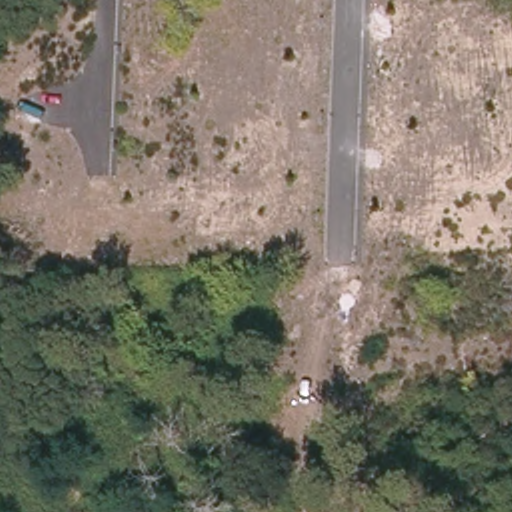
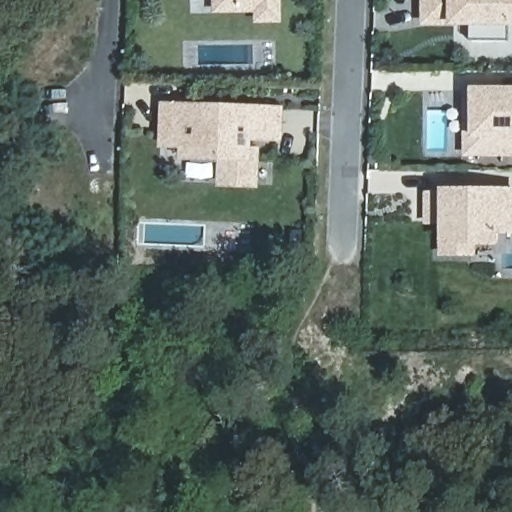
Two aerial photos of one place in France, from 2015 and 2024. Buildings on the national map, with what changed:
new [(255,12),(212,13),(212,0),(282,0),(282,22),(255,23),(255,12)]
new [(472,25),(448,26),(422,24),(421,0),(512,0),(512,26),(512,25),(509,40),(471,40),(472,25)]
demolished [(105,20),(106,49),(64,51),(64,22),(105,20)]
new [(462,89),(468,88),(512,88),(512,156),(463,156),(462,89)]
new [(161,102),(283,106),(282,140),(252,140),(252,146),(261,146),(260,188),(217,187),(219,161),(180,160),(180,147),(158,148),(161,102)]
demolished [(96,119),(98,152),(54,154),(54,133),(53,119),(96,119)]
demolished [(56,187),(100,185),(102,251),(57,252),(56,187)]
new [(512,234),(497,234),(497,245),(474,245),(474,256),(445,256),(446,197),(512,197),(512,234)]
new [(446,200),(446,225),(431,225),(431,200),(446,200)]

